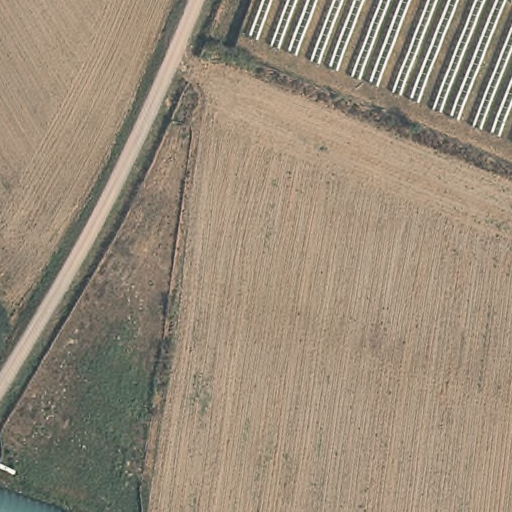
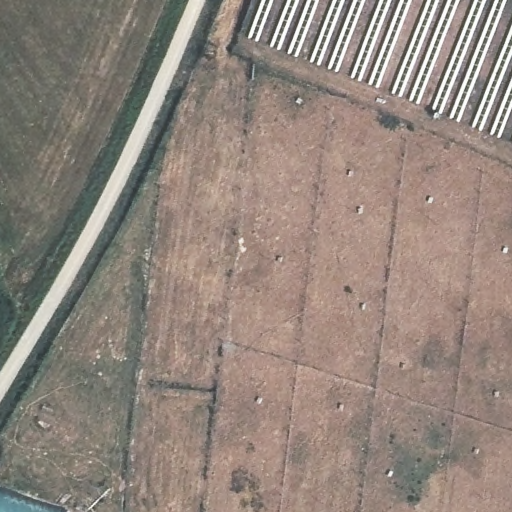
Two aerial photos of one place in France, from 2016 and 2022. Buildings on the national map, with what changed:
unchanged [(64,512),(0,512),(0,490),(64,510),(64,512)]

